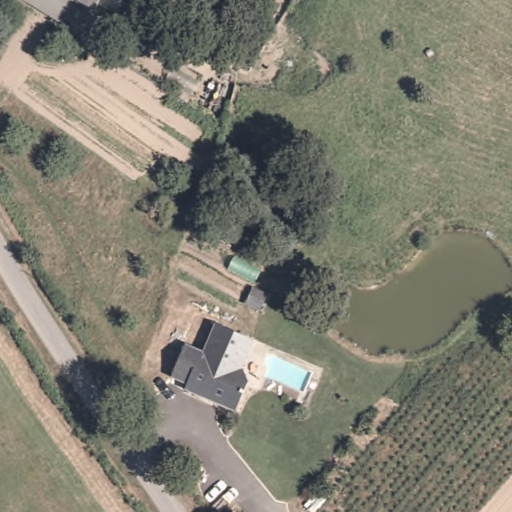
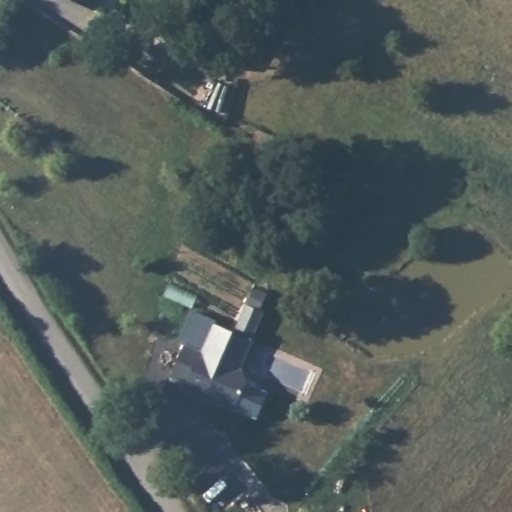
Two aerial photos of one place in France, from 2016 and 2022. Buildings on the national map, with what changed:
unchanged [(68,0),(106,0),(100,13),(68,0)]
unchanged [(256,343),(245,371),(249,379),(236,411),(183,392),(184,386),(171,379),(185,346),(201,353),(212,324),(256,343)]

